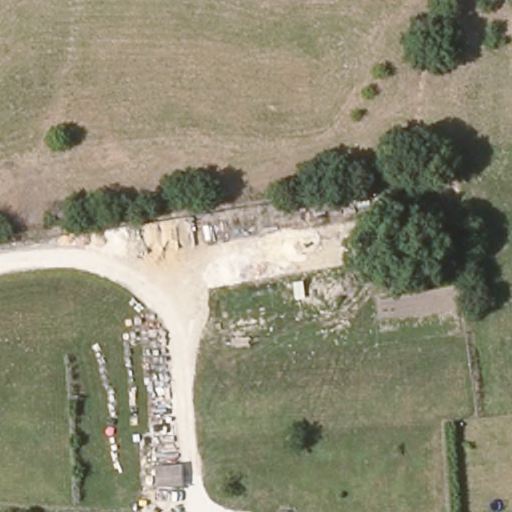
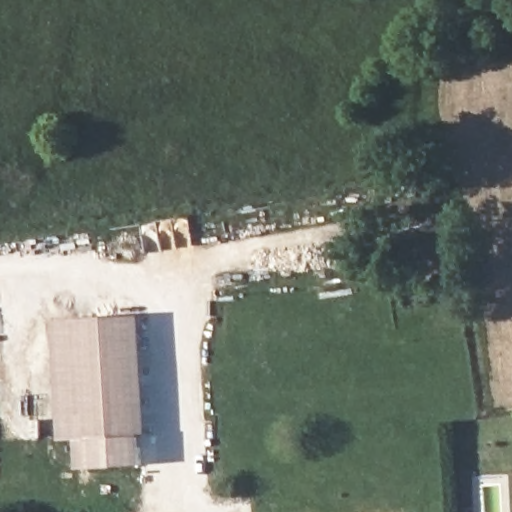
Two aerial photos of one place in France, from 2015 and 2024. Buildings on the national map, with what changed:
new [(147,436),(141,436),(75,439),(59,440),(52,320),(141,316),(147,436)]
new [(77,468),(75,439),(141,436),(143,465),(77,468)]
unchanged [(156,489),(155,466),(182,462),(185,487),(156,489)]

